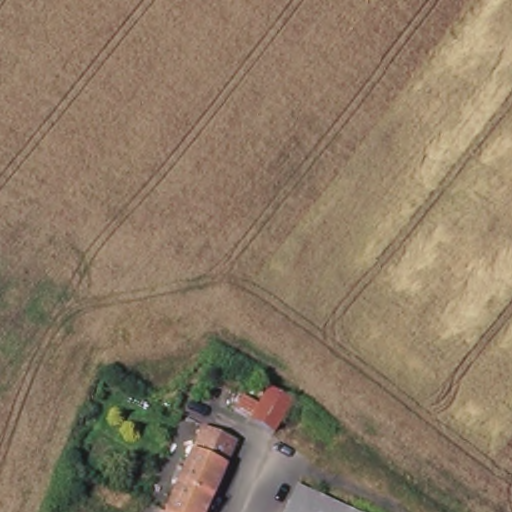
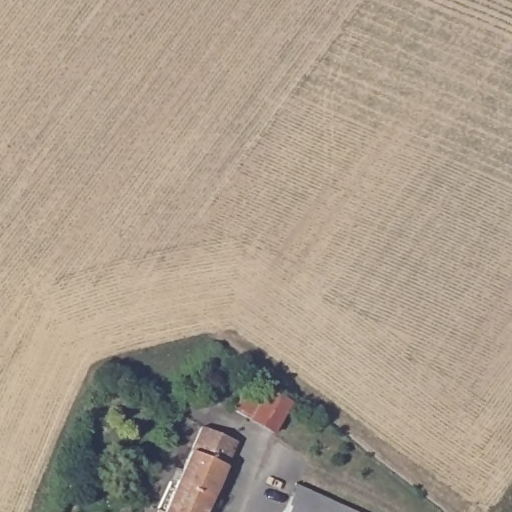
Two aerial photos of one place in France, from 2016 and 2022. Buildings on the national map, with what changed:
unchanged [(261,404),(268,389),(289,400),(283,414),(276,429),(255,418),(261,404)]
unchanged [(237,440),(208,512),(164,512),(200,424),(237,440)]
unchanged [(371,512),(281,512),(295,480),(371,512)]

